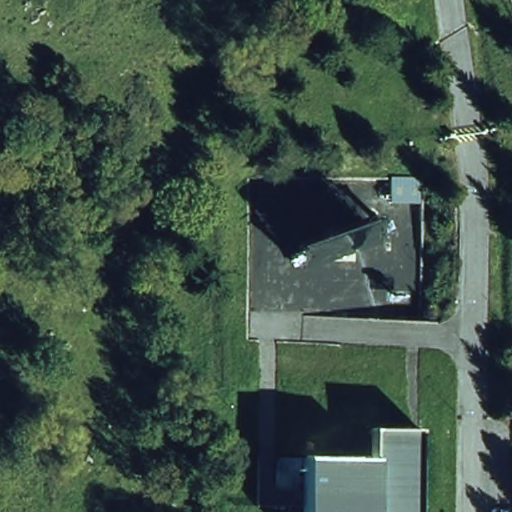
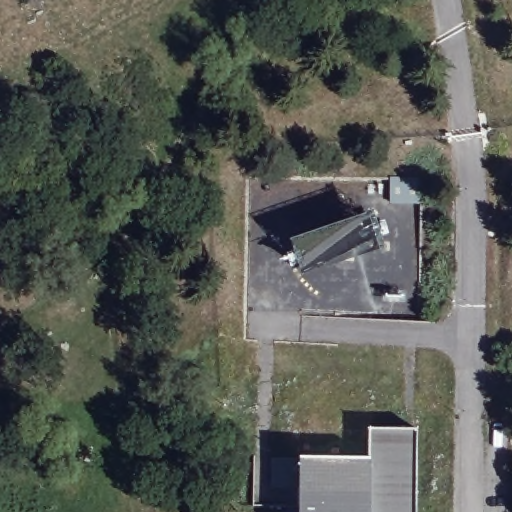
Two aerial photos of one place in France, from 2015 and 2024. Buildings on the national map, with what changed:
unchanged [(289,262),(353,195),(380,219),(317,285),(289,262)]
unchanged [(301,512),(301,487),(272,488),(273,456),(369,457),(369,428),(419,428),(419,512),(301,512)]

